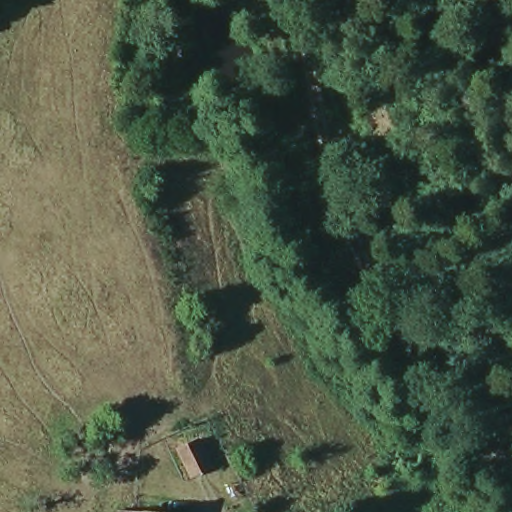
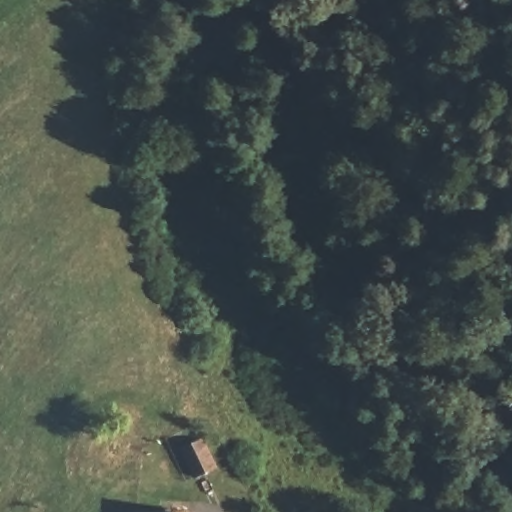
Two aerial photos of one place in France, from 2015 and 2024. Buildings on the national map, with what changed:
unchanged [(197,437),(212,471),(190,482),(175,451),(197,437)]

